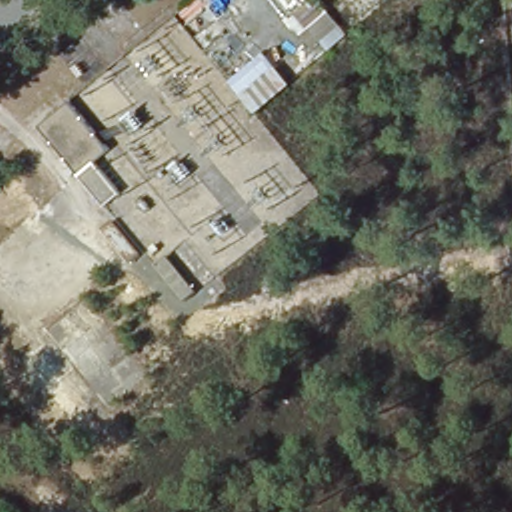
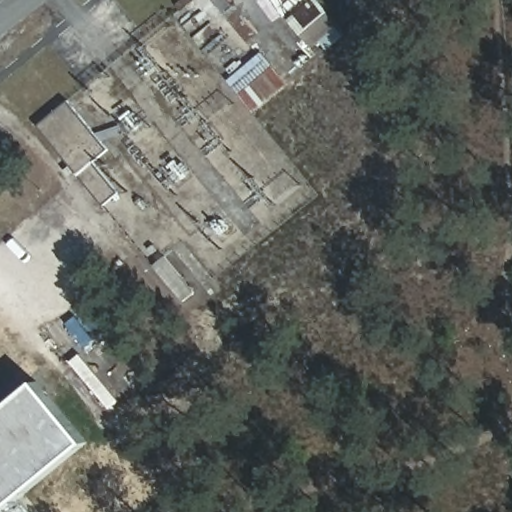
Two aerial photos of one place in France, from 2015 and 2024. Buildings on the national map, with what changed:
demolished [(393,0),(347,37),(317,0),(393,0)]
unchanged [(240,94),(276,67),(293,87),(258,115),(240,94)]
unchanged [(39,128),(71,101),(112,151),(98,163),(123,195),(108,207),(39,128)]
demolished [(112,223),(140,255),(128,266),(101,233),(112,223)]
unchanged [(165,256),(196,291),(182,303),(153,267),(165,256)]
new [(33,386),(81,444),(3,512),(0,512),(0,412),(33,386)]

